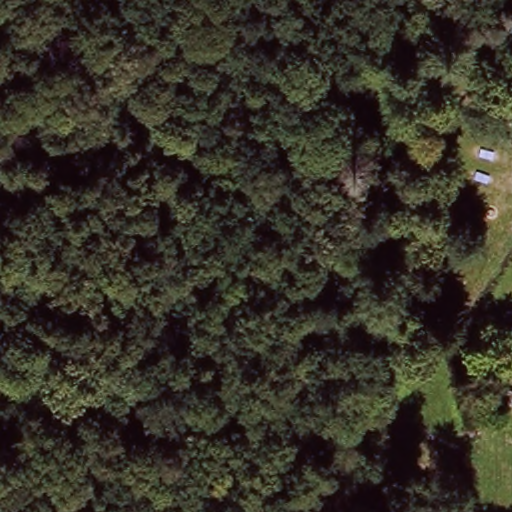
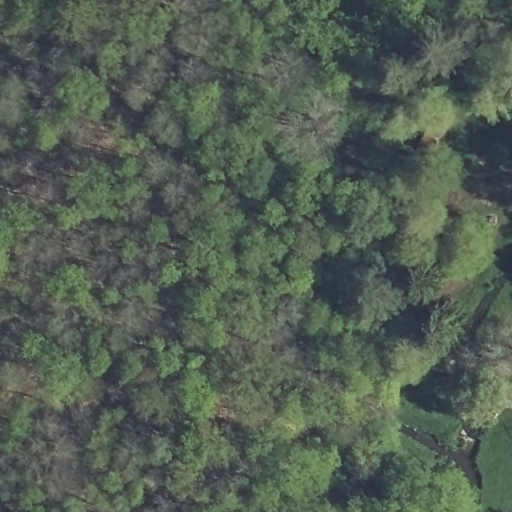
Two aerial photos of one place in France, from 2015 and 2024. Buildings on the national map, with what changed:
[]

